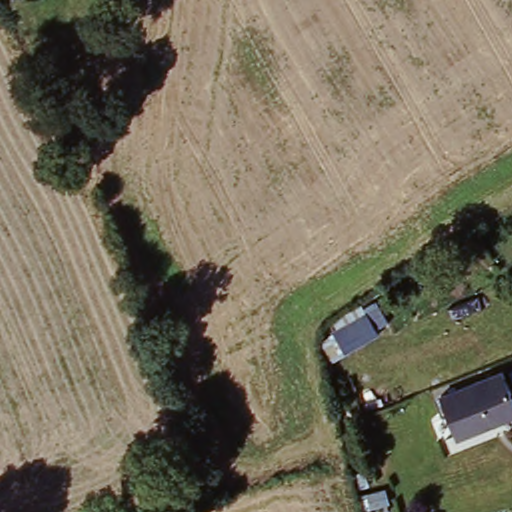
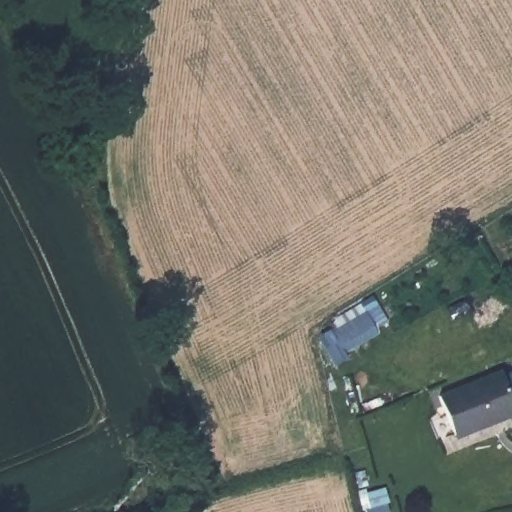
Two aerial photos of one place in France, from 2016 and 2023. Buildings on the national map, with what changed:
unchanged [(322,341),(335,333),(329,324),(360,303),(364,307),(376,299),(389,320),(376,327),(380,333),(333,361),(322,341)]
unchanged [(442,394),(505,372),(512,392),(512,417),(499,421),(456,436),(455,432),(442,394)]

